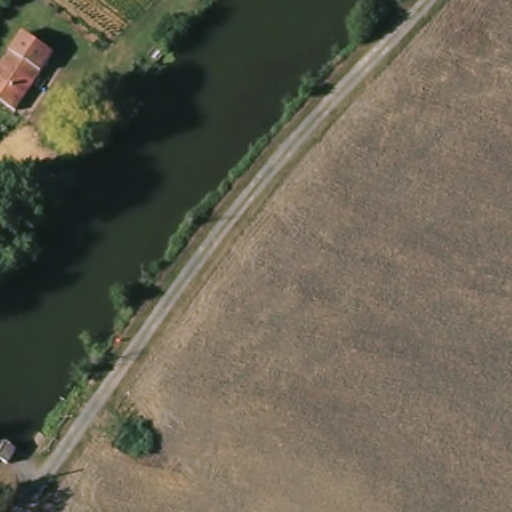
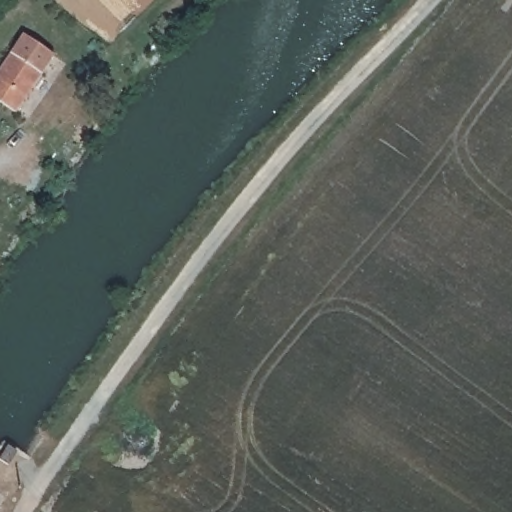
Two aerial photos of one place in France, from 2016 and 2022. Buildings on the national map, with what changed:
unchanged [(20,116),(0,105),(0,73),(25,31),(57,52),(20,116)]

